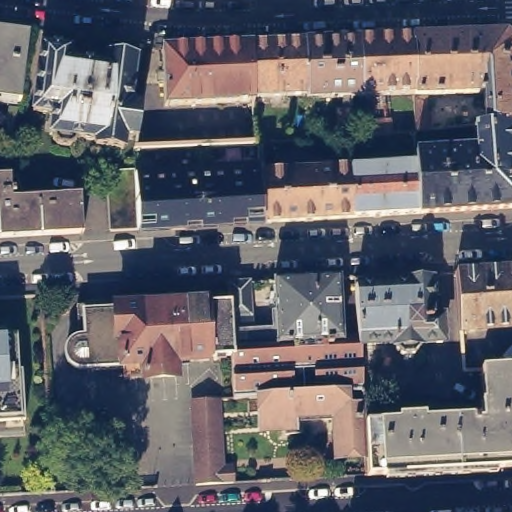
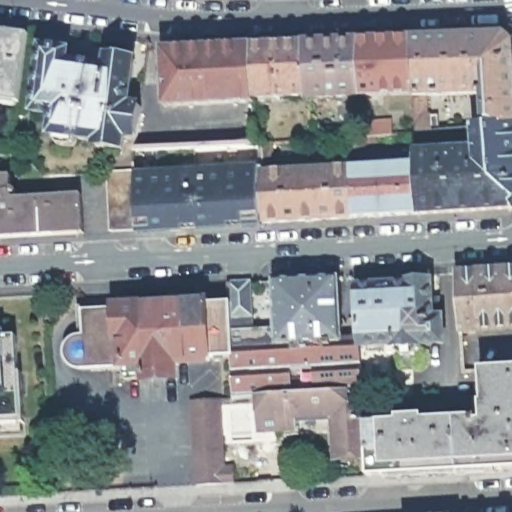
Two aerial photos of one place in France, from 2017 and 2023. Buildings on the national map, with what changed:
unchanged [(30,29),(21,98),(0,95),(0,25),(30,29)]
unchanged [(512,36),(512,124),(492,126),(491,125),(490,94),(432,95),(433,115),(466,112),(467,129),(421,133),(419,94),(420,94),(417,38),(510,35),(512,36)]
unchanged [(417,38),(420,94),(419,94),(367,96),(363,40),(417,38)]
unchanged [(142,107),(141,119),(138,138),(135,137),(125,135),(123,149),(97,145),(97,140),(77,137),(76,142),(70,146),(59,145),(54,139),(55,134),(51,134),(53,114),(33,112),(42,47),(46,47),(47,40),(67,42),(66,50),(70,50),(67,62),(107,67),(108,56),(135,60),(130,105),(141,107),(142,107)]
unchanged [(327,42),(363,40),(367,96),(313,98),(312,95),(310,43),(327,42)]
unchanged [(279,44),(310,43),(312,95),(257,97),(256,45),(279,44)]
unchanged [(256,45),(257,97),(257,102),(170,106),(168,49),(256,45)]
unchanged [(363,122),(392,120),(392,135),(375,135),(376,143),(365,144),(365,149),(351,149),(350,137),(364,136),(363,122)]
unchanged [(422,154),(481,150),(480,141),(422,145),(420,133),(421,133),(467,129),(492,126),(512,124),(512,208),(425,214),(422,163),(422,154)]
unchanged [(265,146),(277,142),(279,171),(357,167),(360,217),(270,222),(265,146)]
unchanged [(270,222),(145,230),(141,170),(140,150),(260,146),(265,146),(270,222)]
unchanged [(357,167),(420,163),(422,163),(425,214),(360,217),(357,167)]
unchanged [(12,170),(12,184),(15,184),(15,189),(12,189),(12,192),(82,189),(84,228),(0,233),(0,170),(12,170)]
unchanged [(113,174),(113,171),(135,170),(140,170),(141,170),(145,230),(117,231),(113,174)]
unchanged [(460,332),(456,272),(512,268),(512,328),(462,331),(460,332)]
unchanged [(430,278),(430,282),(431,282),(433,320),(442,317),(442,318),(443,341),(442,342),(421,343),(421,345),(419,345),(419,349),(413,355),(402,355),(396,350),(395,345),(394,347),(394,345),(386,343),(361,345),(360,345),(360,337),(357,286),(407,284),(407,283),(408,282),(408,279),(412,274),(424,273),(430,278)]
unchanged [(363,391),(262,396),(235,397),(233,356),(230,300),(230,298),(229,283),(249,282),(250,328),(277,327),(275,281),(320,278),(338,278),(342,338),(360,337),(360,345),(363,391)]
unchanged [(232,356),(209,357),(209,360),(175,361),(175,375),(125,379),(123,366),(82,368),(77,368),(73,366),(70,362),(67,358),(66,353),(66,349),(68,345),(71,341),(75,338),(79,337),(85,336),(85,330),(92,326),(98,322),(103,325),(109,324),(108,310),(117,310),(117,307),(207,302),(207,305),(220,303),(220,299),(230,298),(230,300),(233,356),(232,356)]
unchanged [(26,437),(0,437),(0,332),(5,332),(5,340),(20,339),(26,437)]
unchanged [(368,476),(367,455),(365,423),(398,421),(398,417),(423,416),(424,420),(477,417),(477,421),(485,420),(482,370),(465,371),(463,350),(482,348),(483,369),(486,368),(485,355),(512,353),(512,468),(448,471),(368,476)]
unchanged [(337,456),(335,414),(292,416),(292,421),(297,420),(297,427),(293,428),(262,430),(262,396),(363,391),(364,403),(365,423),(367,455),(337,456)]
unchanged [(193,464),(189,397),(217,395),(220,462),(230,462),(230,478),(193,480),(193,464)]

